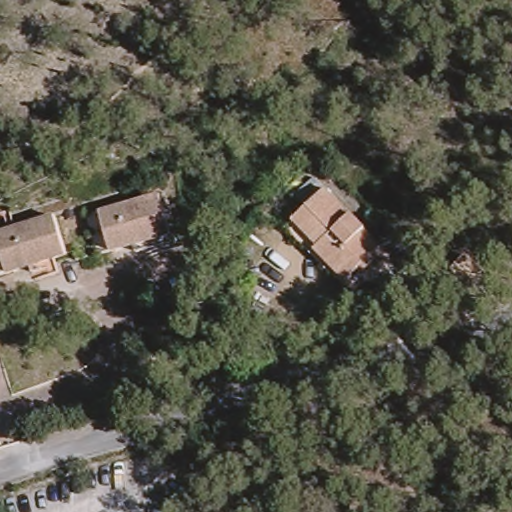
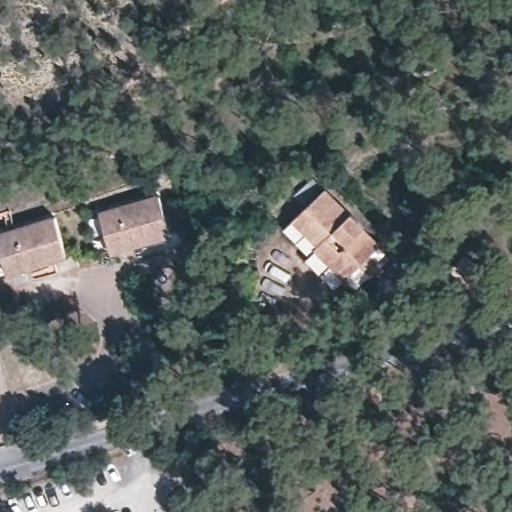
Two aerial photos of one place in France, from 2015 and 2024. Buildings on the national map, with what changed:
unchanged [(276,215),(286,205),(316,174),(389,241),(354,276),(348,282),(276,215)]
unchanged [(158,193),(168,232),(176,230),(181,244),(133,258),(129,243),(109,248),(98,210),(158,193)]
unchanged [(63,254),(72,252),(76,267),(32,280),(27,266),(15,269),(5,272),(0,255),(0,232),(51,216),(63,254)]
unchanged [(474,250),(489,265),(478,279),(462,264),(474,250)]

